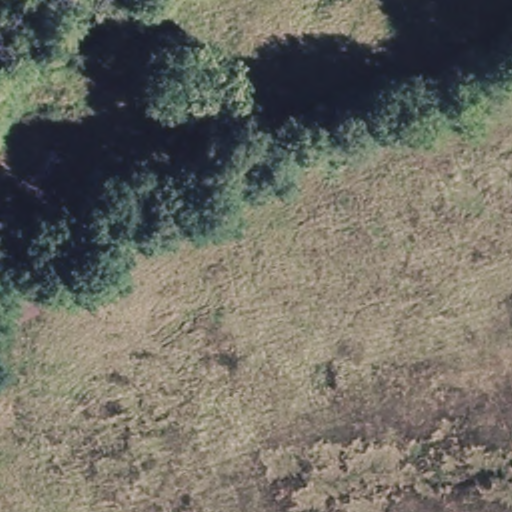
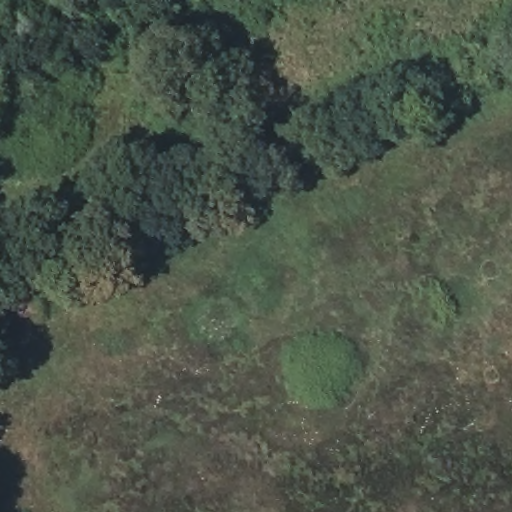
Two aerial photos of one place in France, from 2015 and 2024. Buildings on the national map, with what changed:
unchanged [(153,230),(130,242),(123,228),(135,223),(147,217),(153,230)]

